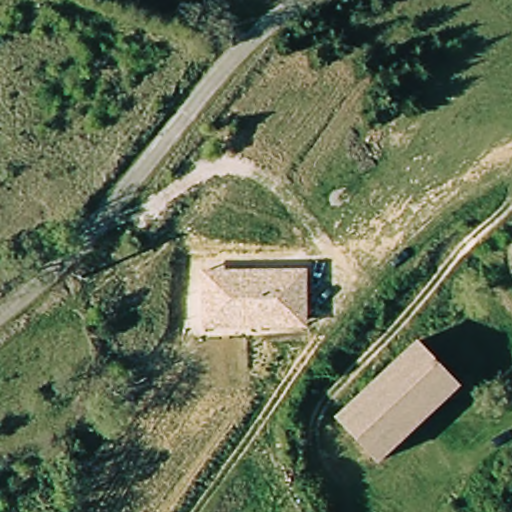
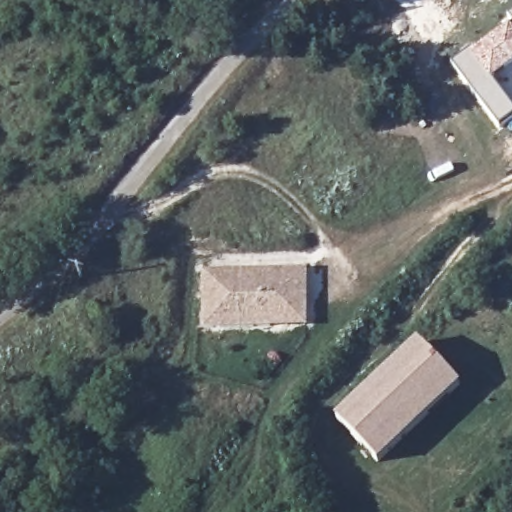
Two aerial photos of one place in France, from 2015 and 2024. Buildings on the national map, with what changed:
new [(512,107),(512,120),(501,128),(452,64),(512,16),(512,66),(493,81),(512,107)]
unchanged [(203,326),(202,269),(306,269),(307,329),(203,326)]
unchanged [(432,352),(464,403),(368,461),(336,410),(432,352)]

